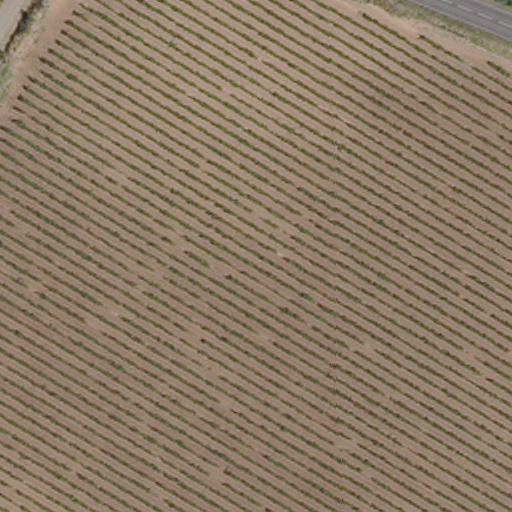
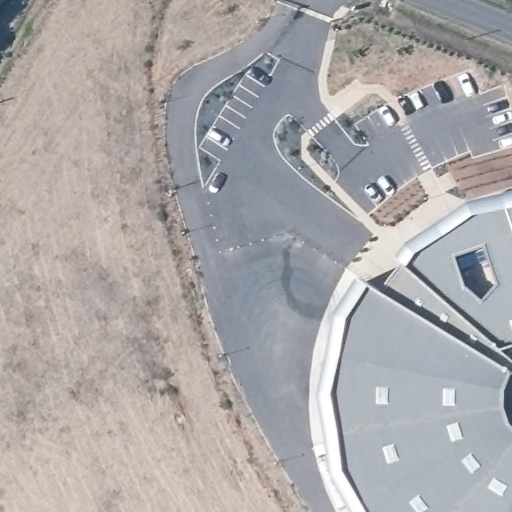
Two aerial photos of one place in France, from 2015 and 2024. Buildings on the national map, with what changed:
new [(405,263),(396,257),(407,244),(469,203),(512,192),(512,512),(357,512),(337,474),(323,393),(337,317),(364,280),(384,291),(405,263)]

